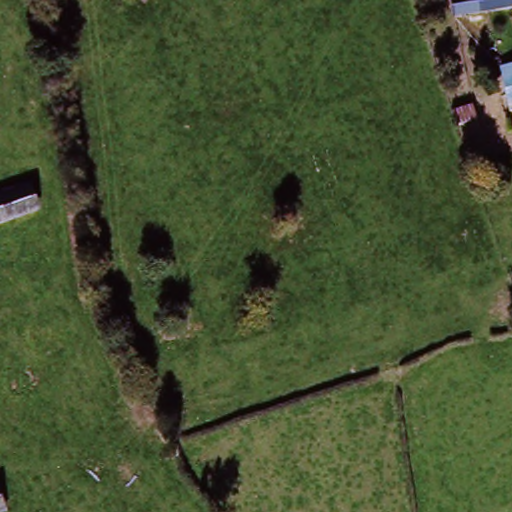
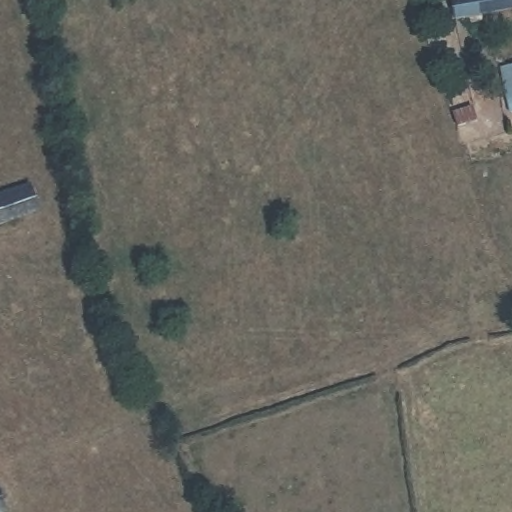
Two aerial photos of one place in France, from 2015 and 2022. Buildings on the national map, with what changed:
unchanged [(512,13),(475,20),(469,1),(475,0),(512,0),(512,13)]
unchanged [(502,74),(512,72),(512,117),(511,118),(502,74)]
unchanged [(29,213),(0,224),(0,197),(20,189),(29,213)]
unchanged [(7,512),(0,512),(0,499),(7,512)]

